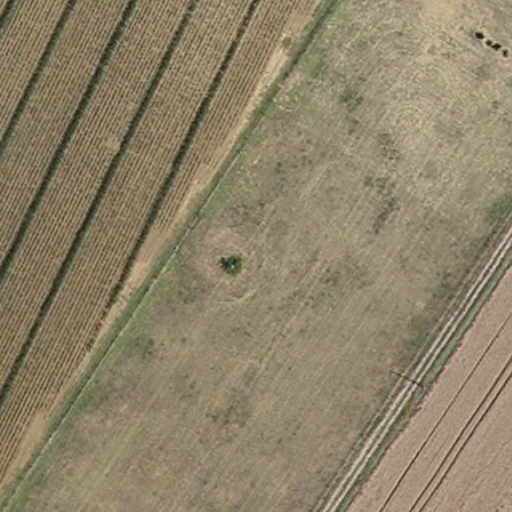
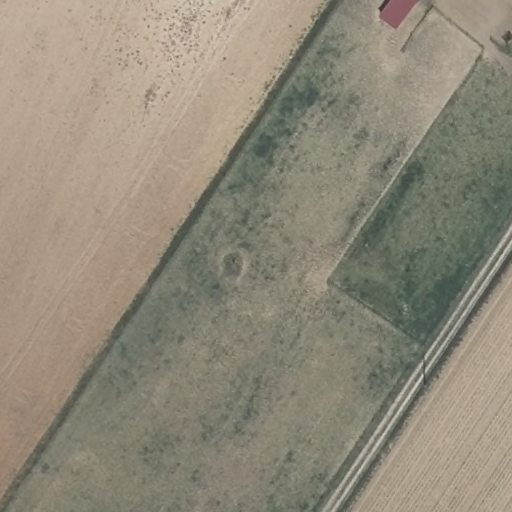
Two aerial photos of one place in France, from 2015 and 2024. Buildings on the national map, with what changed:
new [(423,0),(398,33),(378,18),(391,0),(423,0)]

